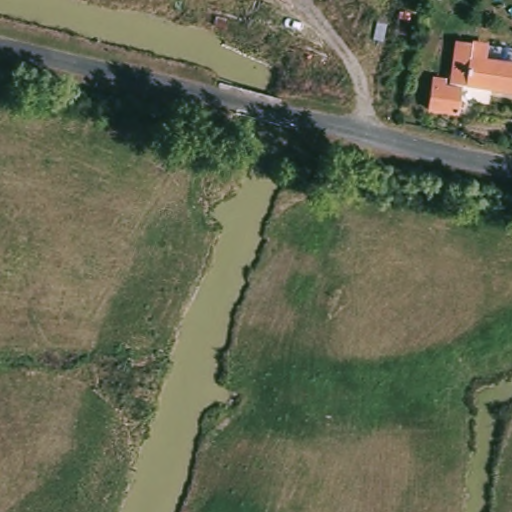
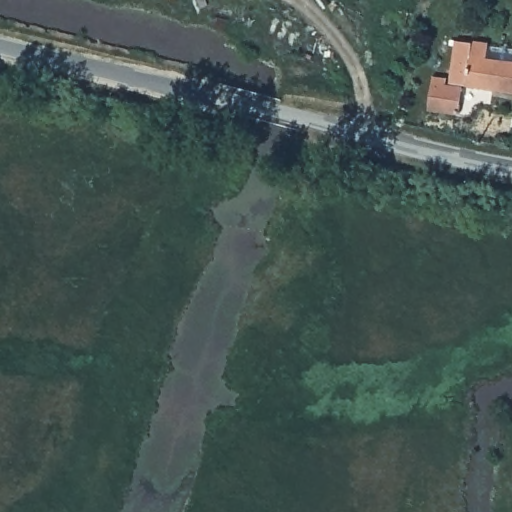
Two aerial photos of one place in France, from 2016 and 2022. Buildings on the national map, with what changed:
unchanged [(512,65),(512,95),(450,87),(455,42),(484,47),(482,61),(512,65)]
unchanged [(442,89),(461,92),(457,117),(427,112),(431,81),(443,82),(442,89)]

